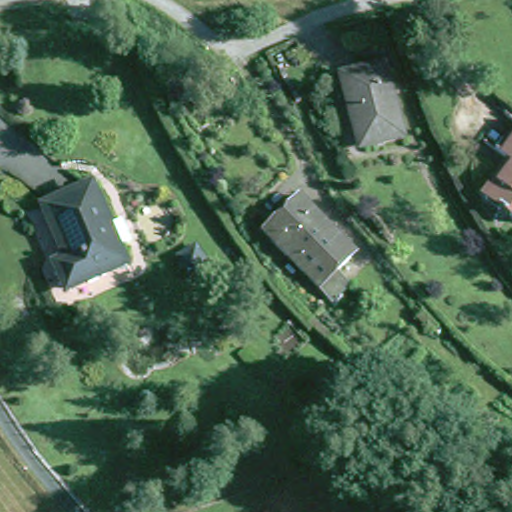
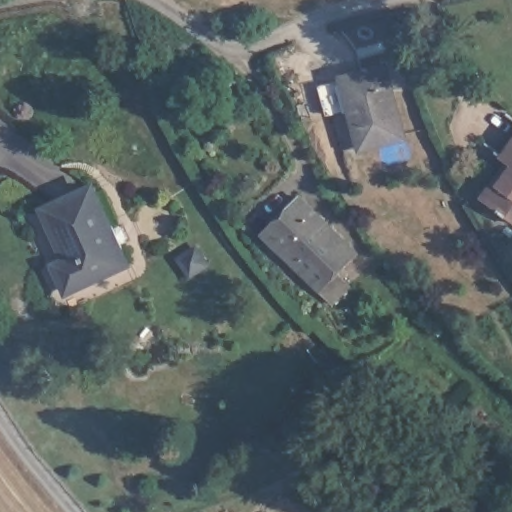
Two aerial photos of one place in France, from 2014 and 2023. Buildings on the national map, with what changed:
unchanged [(379,66),(401,132),(364,145),(341,79),(379,66)]
unchanged [(486,207),(511,168),(499,161),(512,142),(512,224),(486,207)]
unchanged [(113,230),(120,244),(108,250),(117,270),(60,295),(53,276),(60,273),(36,217),(83,196),(101,235),(113,230)]
unchanged [(354,256),(332,276),(344,289),(329,304),(273,248),(260,236),(269,227),(298,198),(354,256)]
unchanged [(192,293),(178,275),(195,262),(209,278),(192,293)]

